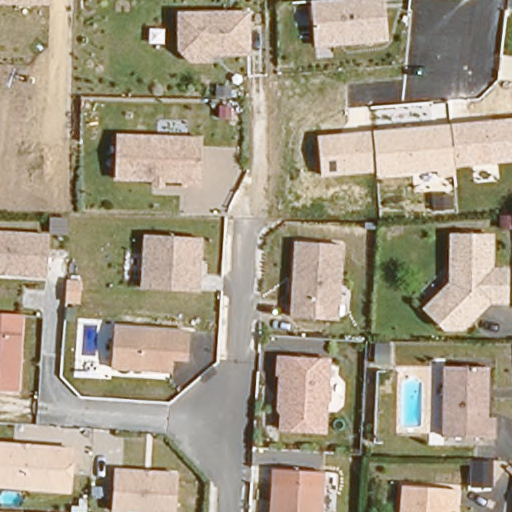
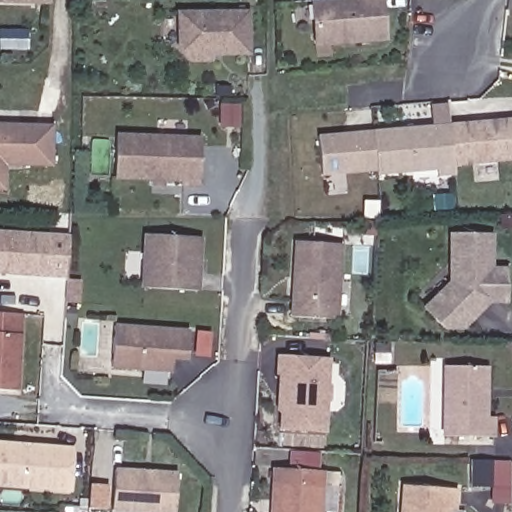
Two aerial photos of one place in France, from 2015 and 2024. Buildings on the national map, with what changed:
unchanged [(0,0),(50,0),(50,5),(0,3),(0,0)]
unchanged [(381,42),(313,47),(310,0),(382,0),(381,42)]
unchanged [(249,54),(210,55),(211,61),(189,62),(180,52),(180,13),(249,11),(249,54)]
unchanged [(453,166),(455,175),(437,178),(436,170),(376,177),(375,170),(321,177),(317,136),(373,130),(512,117),(512,161),(453,166)]
new [(4,192),(0,192),(0,123),(53,125),(52,167),(5,166),(4,192)]
unchanged [(200,189),(184,189),(182,181),(118,180),(120,134),(202,136),(200,189)]
unchanged [(45,277),(0,275),(0,231),(49,235),(45,277)]
unchanged [(146,235),(204,239),(201,290),(144,287),(146,235)]
unchanged [(297,242),(345,245),(339,316),(293,317),(297,242)]
unchanged [(491,245),(491,274),(505,274),(505,305),(481,305),(478,307),(475,311),(475,315),(475,318),(463,332),(449,332),(431,315),(455,288),(455,245),(491,245)]
unchanged [(190,361),(174,360),(172,371),(113,368),(115,325),(189,329),(190,361)]
unchanged [(0,331),(22,333),(17,388),(0,389),(0,331)]
unchanged [(326,432),(279,429),(280,355),(329,358),(326,432)]
unchanged [(485,417),(490,417),(490,441),(441,440),(442,369),(486,370),(485,417)]
unchanged [(0,439),(70,444),(67,492),(0,489),(0,439)]
new [(475,460),(495,461),(495,486),(475,486),(475,460)]
unchanged [(175,470),(173,512),(107,512),(111,465),(175,470)]
unchanged [(323,470),(320,512),(266,512),(268,468),(323,470)]
unchanged [(399,512),(400,492),(448,493),(448,512),(399,512)]

